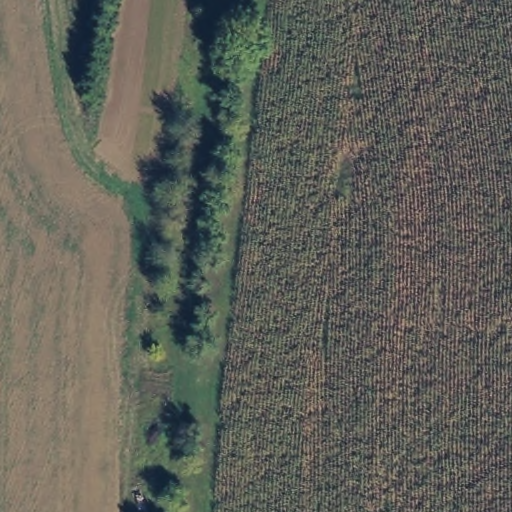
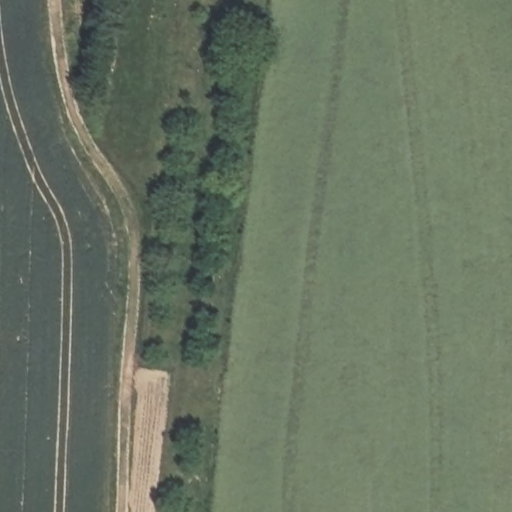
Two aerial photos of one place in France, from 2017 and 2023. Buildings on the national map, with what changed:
[]

